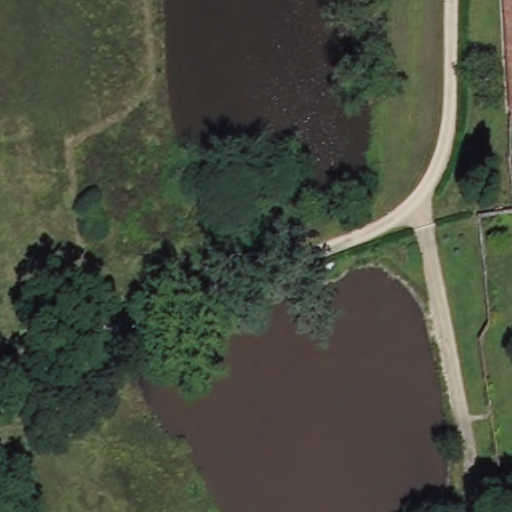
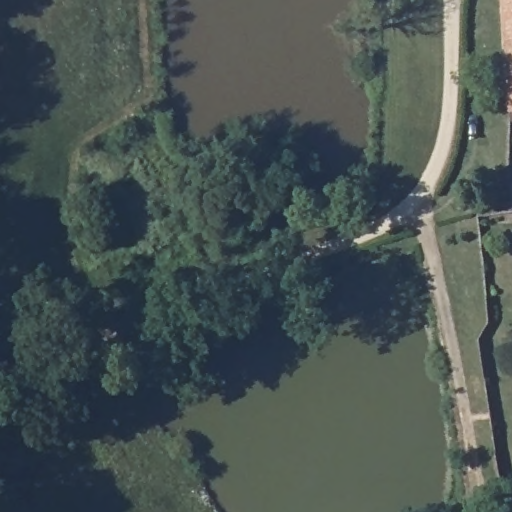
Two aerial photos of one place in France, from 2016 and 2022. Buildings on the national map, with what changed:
unchanged [(510,0),(512,0),(512,114),(510,0)]

